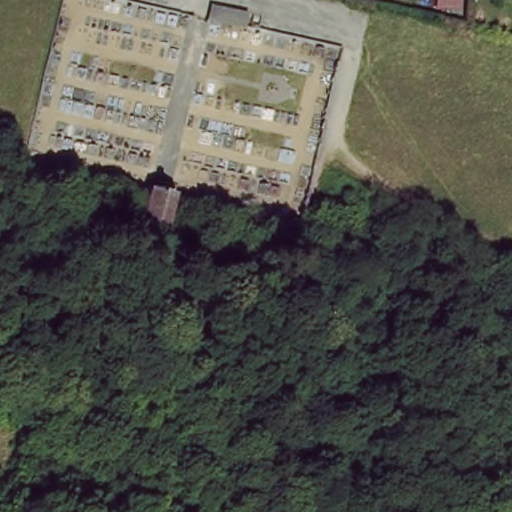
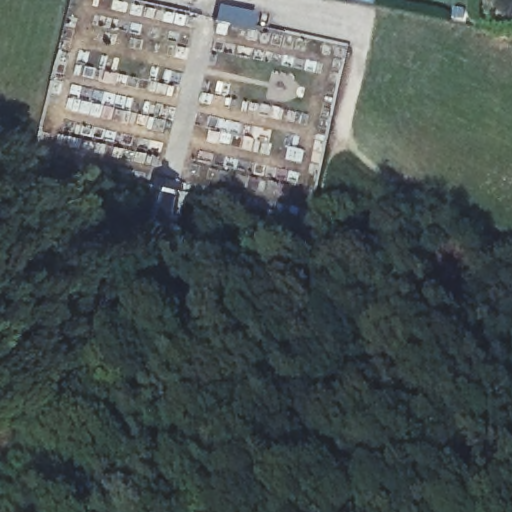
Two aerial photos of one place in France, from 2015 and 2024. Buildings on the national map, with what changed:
unchanged [(251,17),(227,11),(214,9),(216,0),(238,0),(254,4),(251,17)]
unchanged [(178,193),(170,232),(145,227),(154,187),(178,193)]

